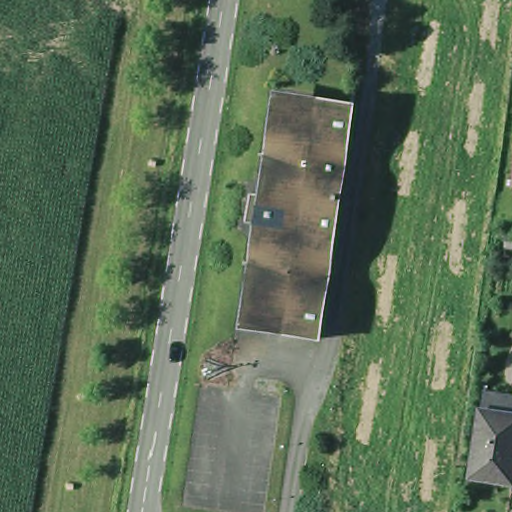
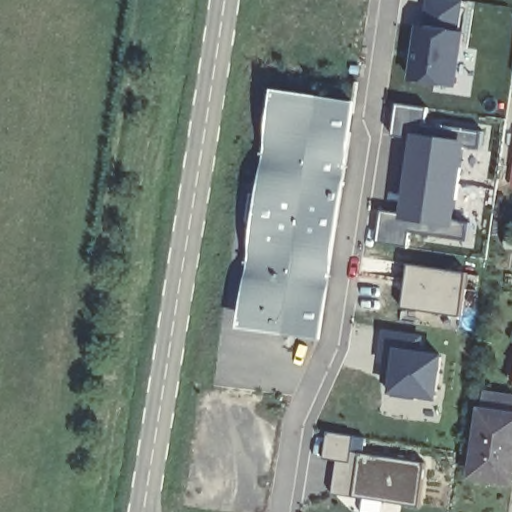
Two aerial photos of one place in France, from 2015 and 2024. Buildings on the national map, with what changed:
new [(464,28),(470,30),(463,86),(417,80),(422,24),(427,26),(430,0),(462,0),(465,1),(464,28)]
new [(433,109),(432,126),(487,134),(472,241),(415,232),(413,248),(380,244),(387,211),(406,215),(418,138),(399,137),(401,104),(433,109)]
unchanged [(353,116),(321,336),(250,326),(264,230),(253,228),(258,200),(268,201),(283,105),(353,116)]
new [(472,274),(467,316),(409,309),(415,266),(472,274)]
new [(450,355),(445,402),(396,396),(403,346),(450,355)]
unchanged [(480,421),(483,403),(512,407),(512,494),(475,488),(469,487),(472,469),(480,421)]
new [(359,437),(355,456),(429,466),(422,507),(338,496),(342,460),(329,460),(331,434),(359,437)]

